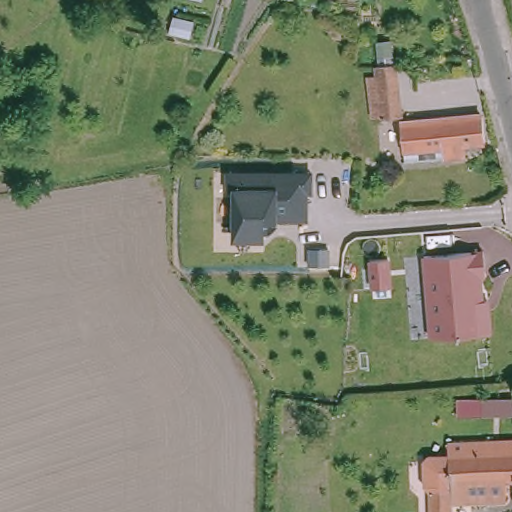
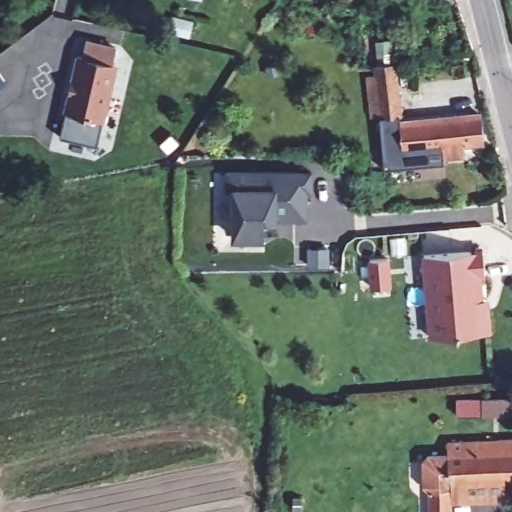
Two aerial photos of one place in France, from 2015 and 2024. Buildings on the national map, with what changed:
unchanged [(172,25),(175,11),(197,16),(194,30),(172,25)]
new [(80,54),(84,55),(87,40),(117,46),(113,62),(117,63),(104,118),(67,110),(80,54)]
unchanged [(404,141),(403,141),(403,139),(398,139),(397,132),(402,131),(402,125),(380,127),(377,106),(373,107),(367,67),(377,65),(375,56),(395,53),(401,107),(399,107),(400,112),(483,105),(486,133),(472,134),(472,141),(465,141),(466,147),(455,147),(445,149),(444,149),(405,152),(404,141)]
new [(0,87),(0,74),(5,83),(0,87)]
new [(99,144),(61,135),(67,110),(104,118),(99,144)]
unchanged [(309,170),(308,222),(280,222),(279,227),(273,234),(265,234),(265,244),(230,242),(230,169),(309,170)]
unchanged [(484,252),(492,333),(430,340),(422,257),(484,252)]
unchanged [(501,476),(501,488),(480,490),(477,487),(475,484),(457,484),(457,496),(445,496),(446,512),(425,512),(425,486),(419,482),(418,456),(424,451),(430,451),(460,449),(463,448),(463,445),(472,445),(472,436),(512,434),(512,476),(501,476)]

